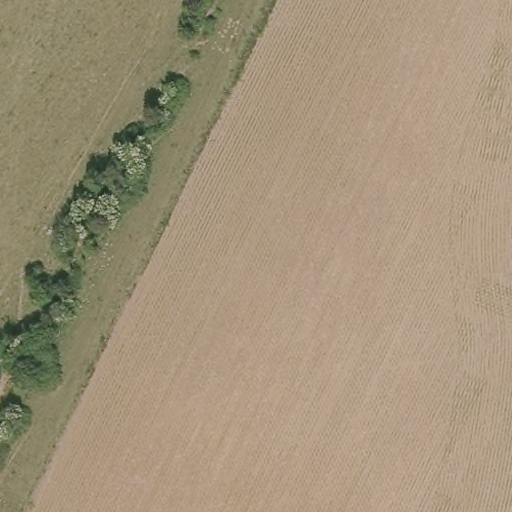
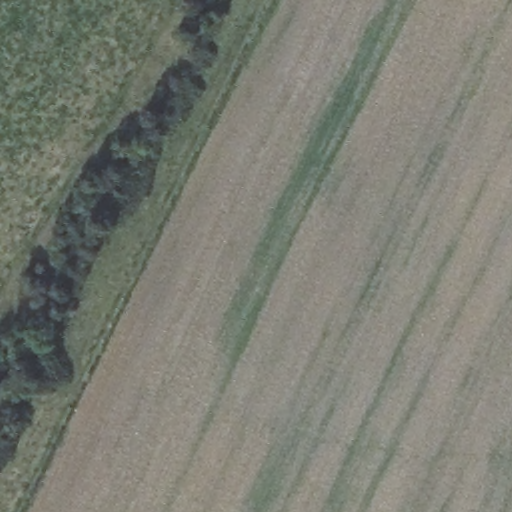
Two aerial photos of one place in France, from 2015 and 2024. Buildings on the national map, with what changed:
[]

